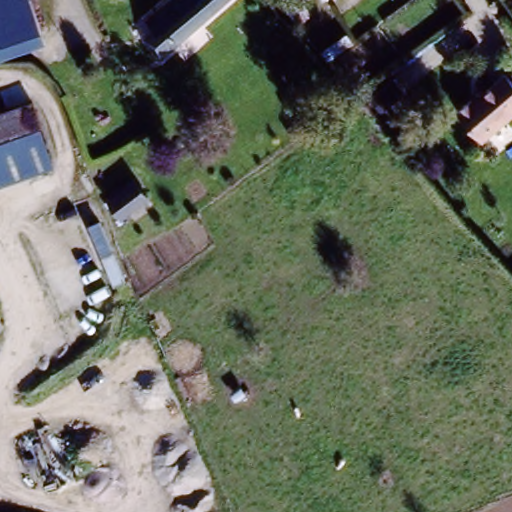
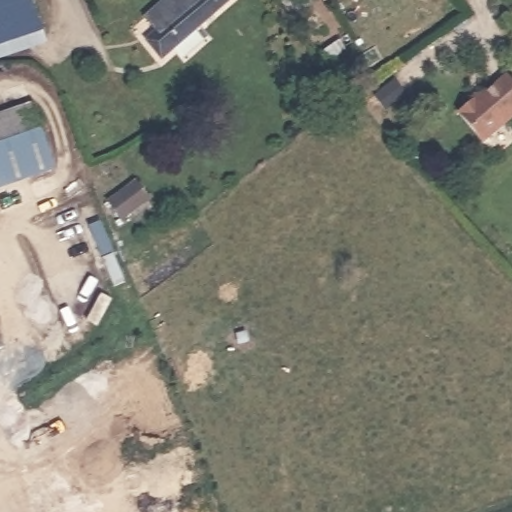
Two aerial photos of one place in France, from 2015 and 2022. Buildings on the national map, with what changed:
unchanged [(0,45),(0,0),(24,0),(36,33),(0,45)]
unchanged [(148,19),(166,11),(160,0),(247,0),(248,2),(157,40),(148,19)]
unchanged [(459,110),(504,73),(512,82),(512,113),(483,137),(459,110)]
unchanged [(0,179),(0,113),(27,103),(48,161),(0,179)]
unchanged [(106,202),(136,181),(151,202),(121,221),(106,202)]

